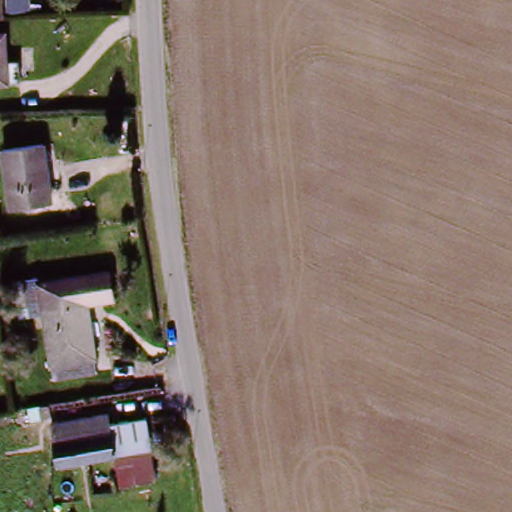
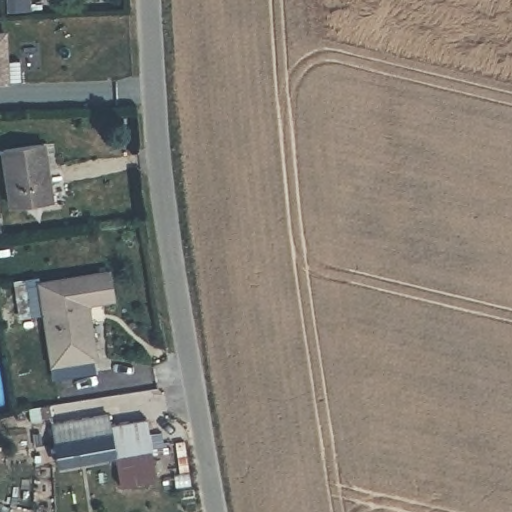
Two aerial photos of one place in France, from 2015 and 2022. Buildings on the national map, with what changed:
unchanged [(24,0),(25,13),(0,13),(0,0),(24,0)]
unchanged [(0,83),(0,35),(8,34),(9,83),(0,83)]
unchanged [(43,148),(53,201),(12,208),(2,155),(43,148)]
unchanged [(31,314),(28,286),(42,284),(41,279),(110,270),(114,299),(88,303),(44,308),(45,312),(31,314)]
unchanged [(88,303),(97,369),(54,375),(45,312),(44,308),(88,303)]
unchanged [(106,418),(108,425),(114,457),(57,466),(51,426),(106,418)]
unchanged [(114,457),(108,425),(145,419),(150,455),(154,479),(119,484),(115,461),(114,457)]

